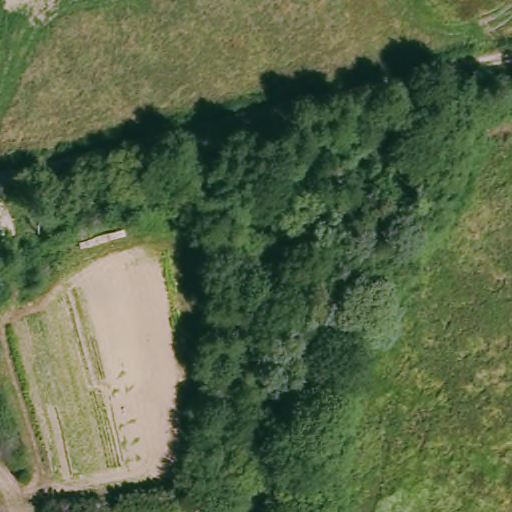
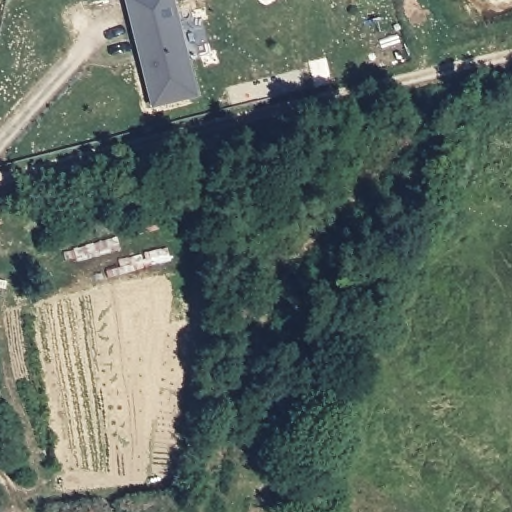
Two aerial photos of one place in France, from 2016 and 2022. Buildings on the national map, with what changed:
new [(125,0),(174,0),(197,97),(150,108),(125,0)]

